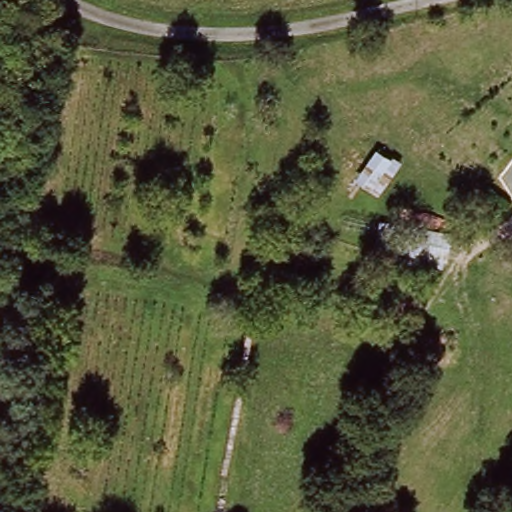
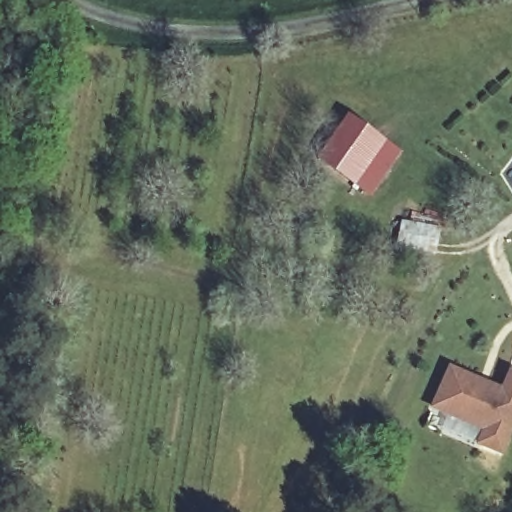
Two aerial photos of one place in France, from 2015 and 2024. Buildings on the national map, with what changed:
new [(354,117),(385,137),(358,178),(327,159),(354,117)]
unchanged [(454,232),(448,266),(377,252),(383,219),(454,232)]
new [(443,370),(496,391),(504,373),(512,376),(512,424),(495,463),(472,453),(479,438),(426,412),(443,370)]

